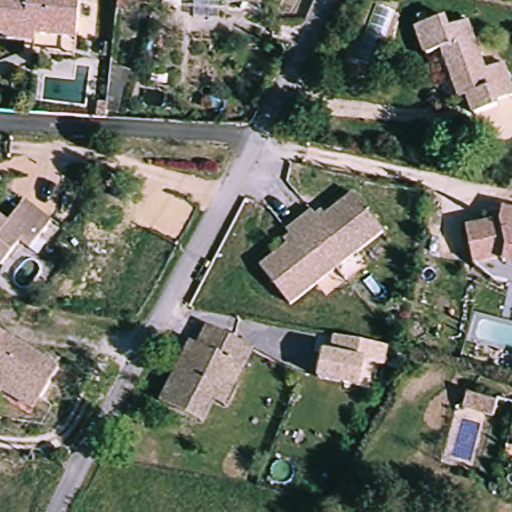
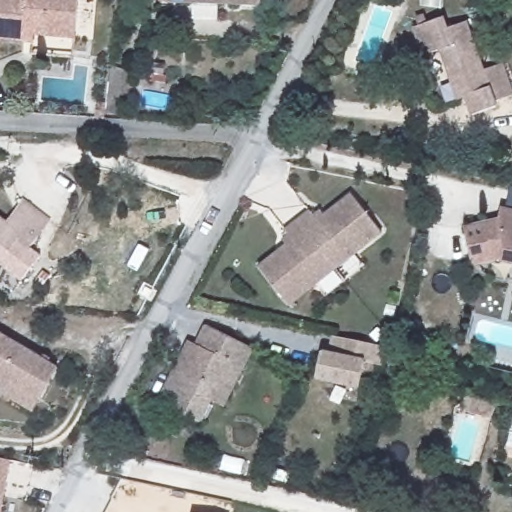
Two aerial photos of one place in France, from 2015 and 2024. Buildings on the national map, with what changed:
unchanged [(0,40),(0,0),(82,0),(78,37),(38,33),(38,42),(28,42),(0,40)]
unchanged [(257,8),(158,4),(159,0),(257,0),(257,8)]
unchanged [(449,80),(439,46),(421,51),(413,23),(418,22),(416,14),(424,11),(426,19),(443,14),(446,25),(466,20),(481,70),(500,64),(510,96),(490,102),(492,107),(467,114),(461,95),(453,97),(449,80)]
unchanged [(99,116),(101,100),(108,101),(107,117),(99,116)]
unchanged [(258,263),(292,237),(285,227),(309,208),(316,218),(351,192),(381,231),(315,282),(288,303),(258,263)]
unchanged [(22,201),(49,223),(28,250),(13,238),(0,254),(0,219),(5,222),(22,201)]
unchanged [(497,259),(498,254),(467,260),(459,223),(494,216),(497,204),(512,208),(512,263),(497,259)]
unchanged [(207,398),(196,419),(157,399),(187,340),(194,343),(203,325),(249,348),(239,367),(221,405),(207,398)]
unchanged [(39,394),(0,373),(0,332),(56,362),(39,394)]
unchanged [(385,368),(366,364),(360,389),(319,380),(325,354),(331,355),(335,338),(349,341),(389,350),(385,368)]
unchanged [(56,362),(33,408),(0,390),(0,373),(39,394),(56,362)]
unchanged [(495,403),(491,417),(459,408),(462,395),(495,403)]
unchanged [(510,442),(512,434),(512,443),(510,442)]
new [(2,512),(0,512),(0,452),(13,454),(2,512)]
new [(191,512),(189,512),(189,511),(191,512)]

